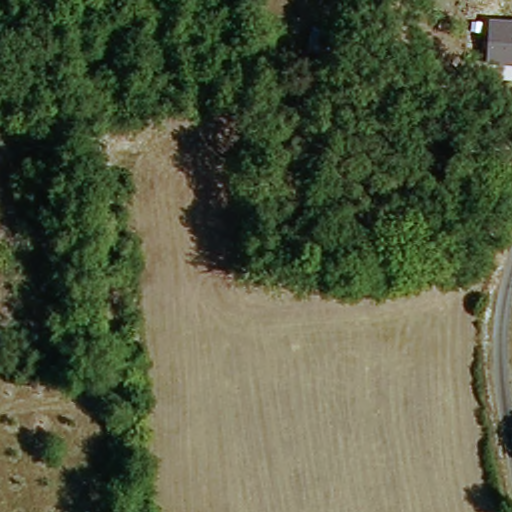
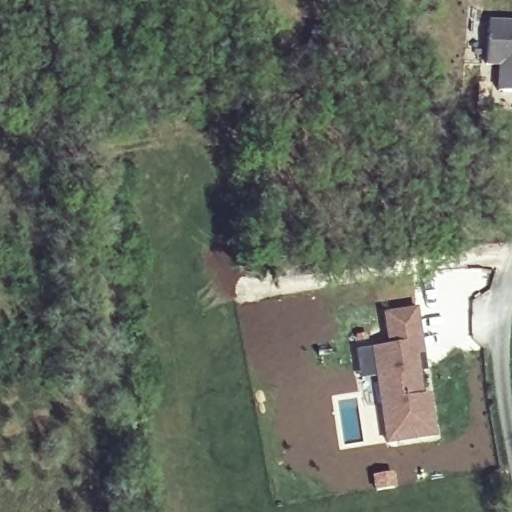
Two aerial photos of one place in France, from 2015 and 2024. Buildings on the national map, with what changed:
unchanged [(512,20),(512,95),(500,95),(501,68),(484,64),(487,18),(512,20)]
new [(390,334),(387,314),(417,310),(427,371),(420,372),(423,394),(430,393),(436,434),(389,442),(383,402),(367,404),(357,339),(390,334)]

